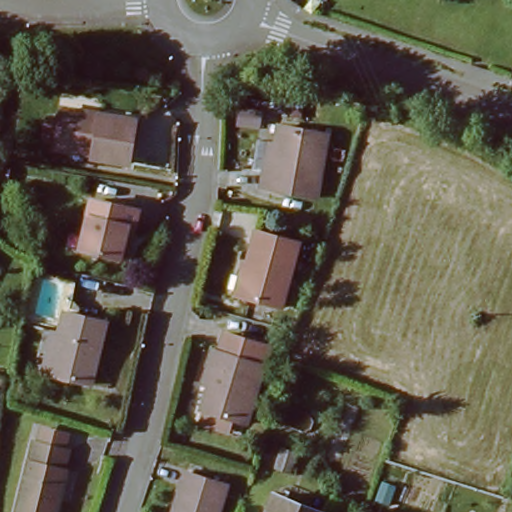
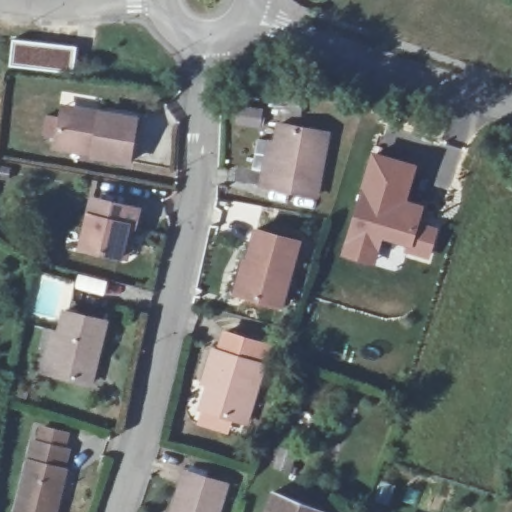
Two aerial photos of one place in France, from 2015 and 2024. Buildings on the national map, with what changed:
new [(76,46),(74,71),(11,66),(14,41),(76,46)]
unchanged [(85,155),(63,151),(69,114),(70,107),(92,111),(129,118),(121,165),(97,161),(85,159),(85,155)]
unchanged [(317,197),(262,190),(264,174),(269,126),(277,127),(324,132),(317,197)]
new [(372,150),(419,165),(408,200),(427,207),(422,222),(441,228),(430,261),(404,253),(406,246),(385,239),(377,268),(341,256),(372,150)]
unchanged [(111,261),(72,254),(79,219),(84,221),(87,207),(128,213),(126,229),(120,263),(111,261)]
unchanged [(283,305),(232,294),(239,261),(249,263),(256,230),(297,239),(283,305)]
unchanged [(48,327),(57,330),(61,311),(103,321),(87,384),(47,374),(38,371),(48,327)]
unchanged [(246,415),(203,403),(211,380),(201,377),(211,343),(262,356),(246,415)]
unchanged [(50,512),(10,512),(29,438),(68,449),(50,512)]
unchanged [(171,512),(182,473),(226,486),(218,512),(171,512)]
unchanged [(262,512),(271,490),(289,497),(324,510),(323,512),(262,512)]

